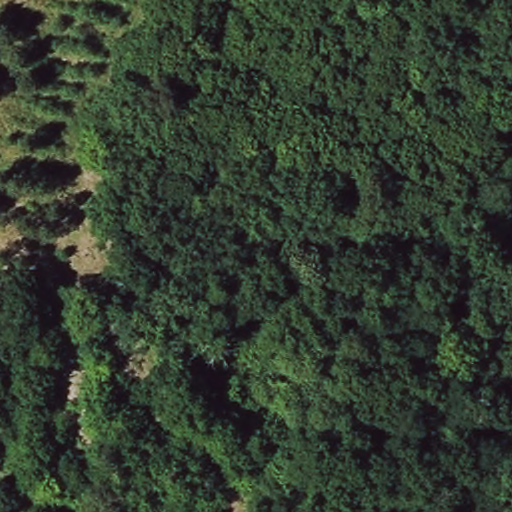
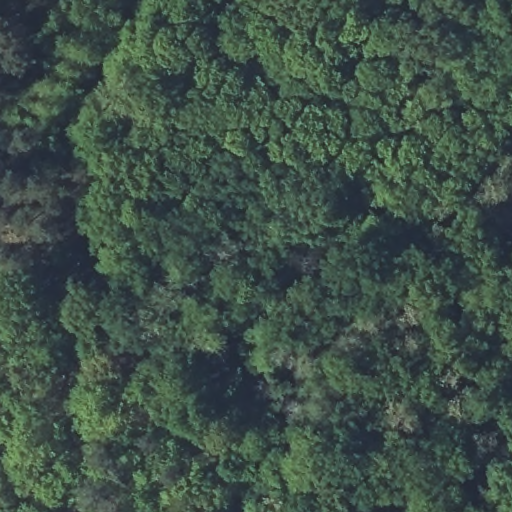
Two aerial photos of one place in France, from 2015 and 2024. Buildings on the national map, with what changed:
unchanged [(512,231),(496,223),(512,188),(512,231)]

